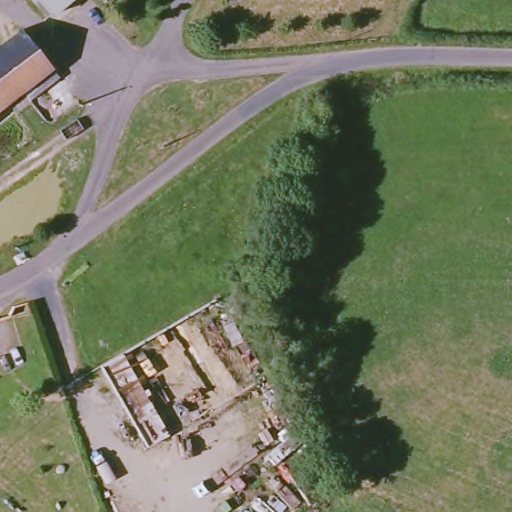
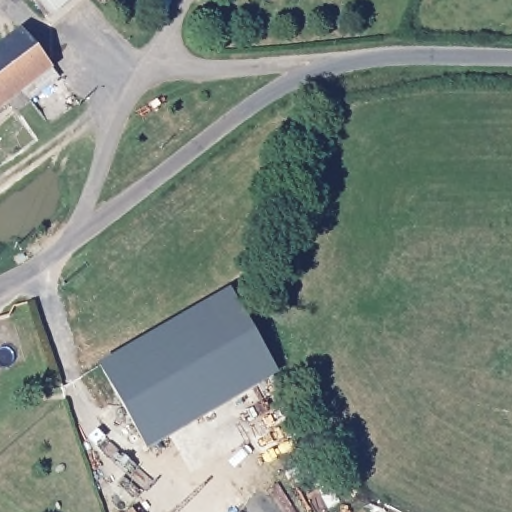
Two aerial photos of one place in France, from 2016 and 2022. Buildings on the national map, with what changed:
unchanged [(45,10),(37,0),(69,0),(50,16),(45,10)]
unchanged [(25,30),(55,68),(65,79),(35,100),(36,102),(20,114),(12,102),(0,111),(0,49),(25,30)]
new [(210,301),(258,386),(145,450),(97,365),(210,301)]

